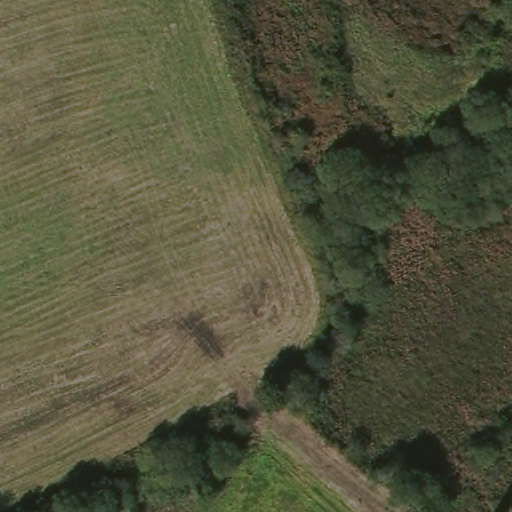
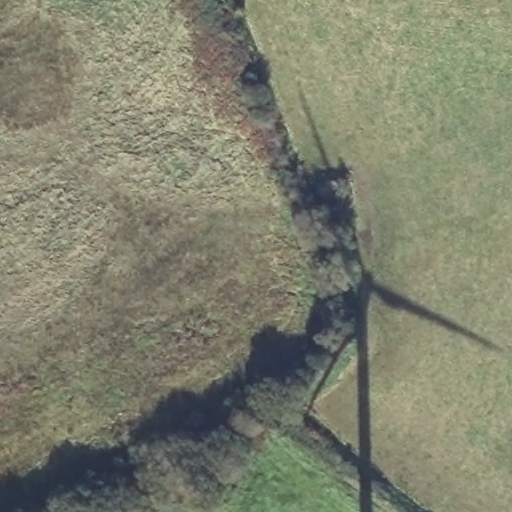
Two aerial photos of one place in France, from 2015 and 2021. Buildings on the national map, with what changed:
[]

